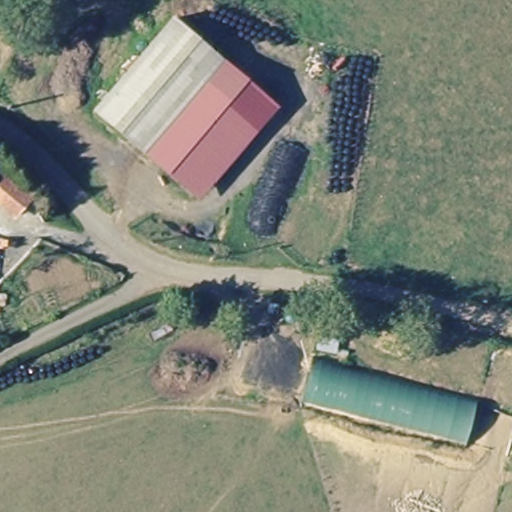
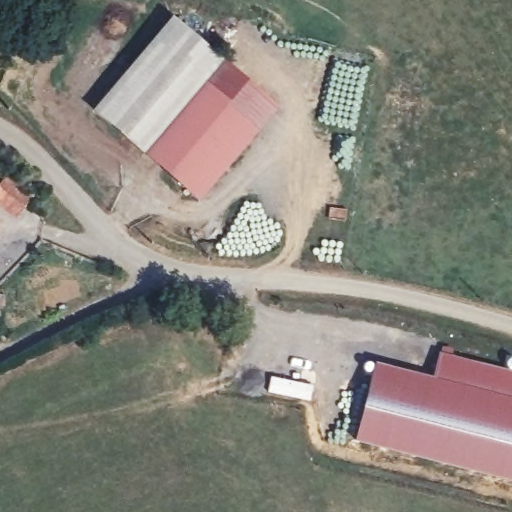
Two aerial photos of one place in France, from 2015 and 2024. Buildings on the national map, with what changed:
unchanged [(219,202),(100,120),(172,14),(225,50),(242,61),(224,89),(275,122),(219,202)]
unchanged [(286,130),(231,210),(219,202),(275,122),(286,130)]
unchanged [(11,177),(33,197),(21,209),(0,189),(0,188),(11,177)]
new [(431,375),(441,345),(453,348),(452,355),(512,370),(512,481),(421,457),(355,439),(372,362),(431,375)]
demolished [(313,357),(479,396),(472,436),(303,400),(313,357)]

